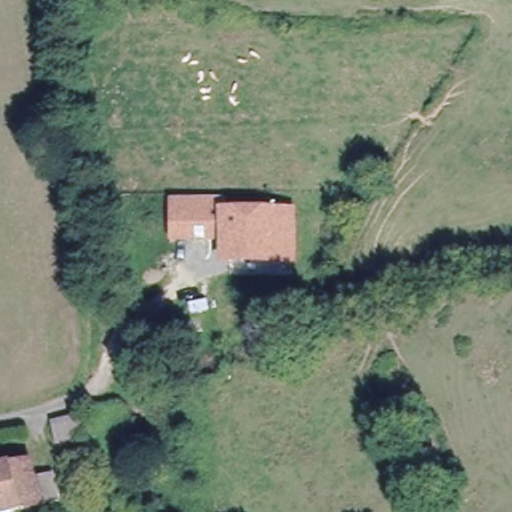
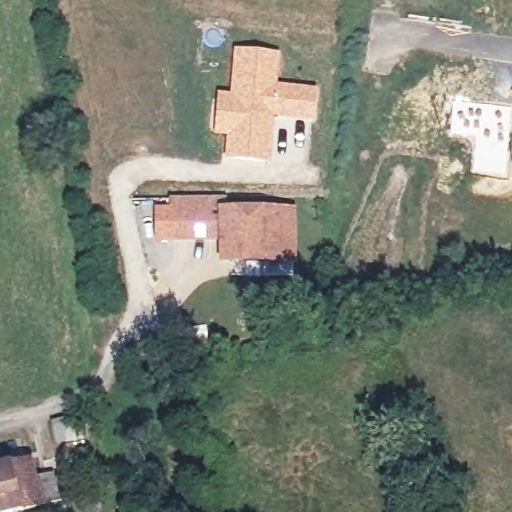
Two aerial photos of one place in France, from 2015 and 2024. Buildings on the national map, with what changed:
new [(216,92),(229,92),(233,48),(280,53),(278,83),(318,87),(315,119),(275,118),(271,162),(224,158),(226,137),(213,135),(216,92)]
unchanged [(175,240),(174,200),(224,199),(224,213),(293,211),(294,261),(291,262),(291,257),(224,258),(224,239),(211,239),(175,240)]
unchanged [(79,418),(85,441),(55,449),(49,425),(79,418)]
unchanged [(36,476),(57,471),(64,497),(1,512),(0,512),(0,464),(31,457),(36,476)]

